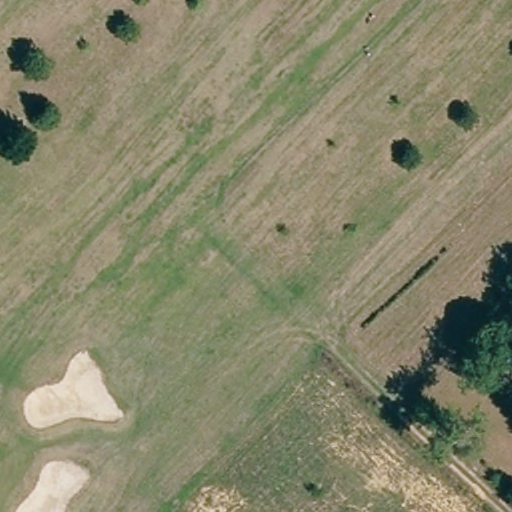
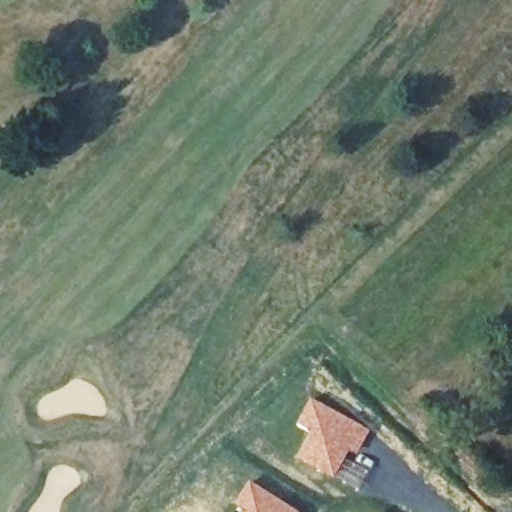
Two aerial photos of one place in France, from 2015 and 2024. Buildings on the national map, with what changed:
new [(307,396),(368,430),(355,455),(348,452),(333,480),(293,458),(306,432),(292,423),(307,396)]
new [(246,479),(298,512),(244,512),(231,502),(246,479)]

